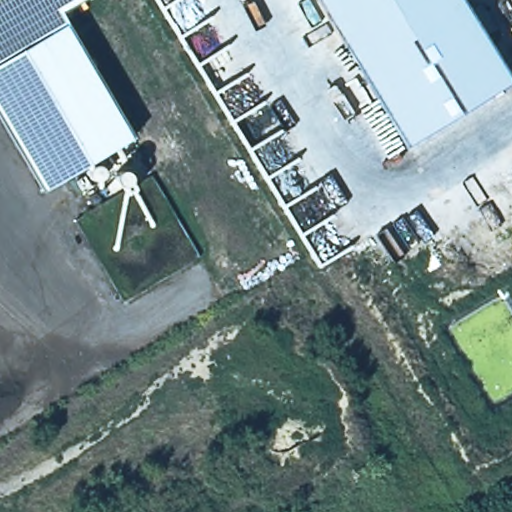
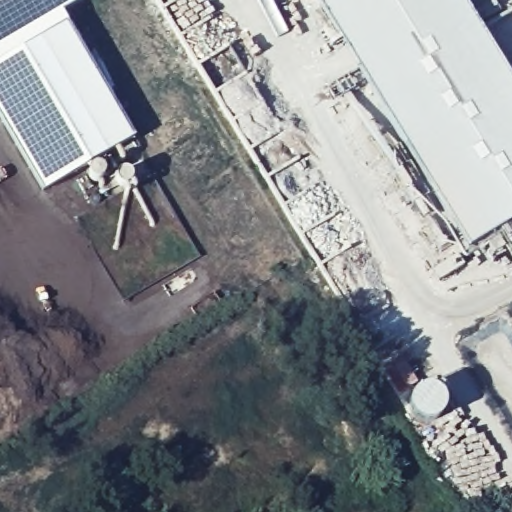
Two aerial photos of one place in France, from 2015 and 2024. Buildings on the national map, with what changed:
unchanged [(62,24),(129,139),(37,192),(0,128),(0,0),(90,0),(93,6),(62,24)]
unchanged [(406,146),(317,0),(461,0),(510,81),(406,146)]
new [(406,146),(510,81),(512,83),(512,219),(467,248),(406,146)]

